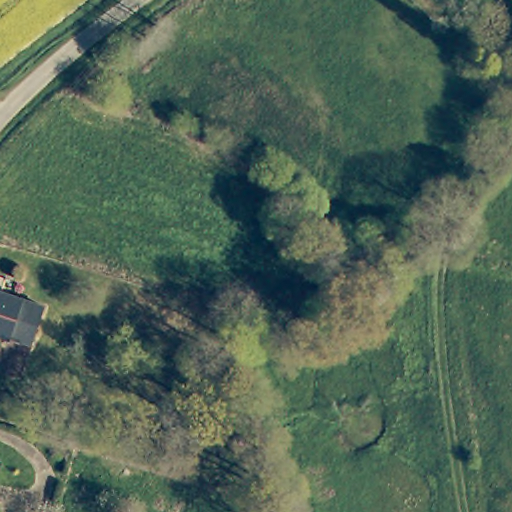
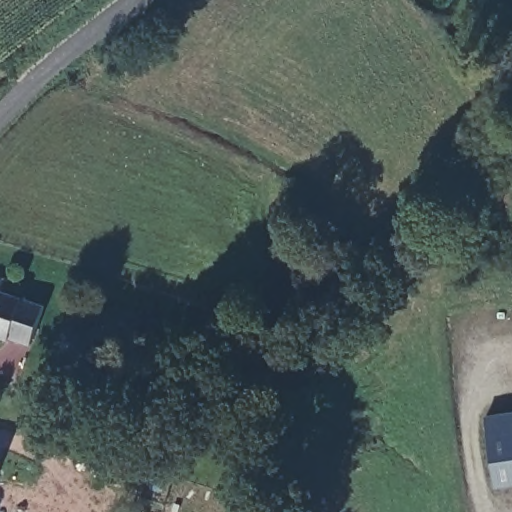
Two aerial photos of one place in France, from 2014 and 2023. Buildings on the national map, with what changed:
unchanged [(42,310),(28,353),(0,345),(0,296),(42,310)]
new [(486,415),(512,412),(512,486),(496,488),(486,415)]

